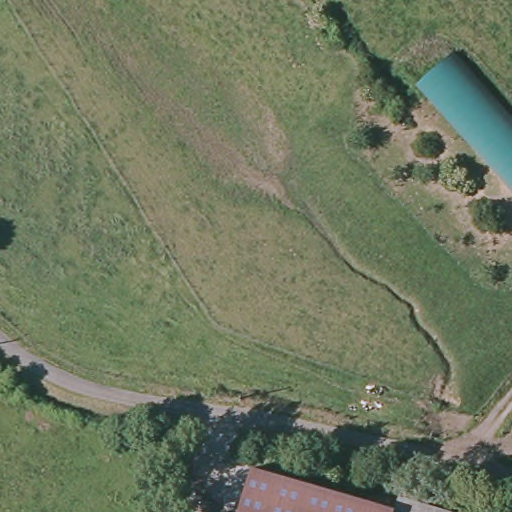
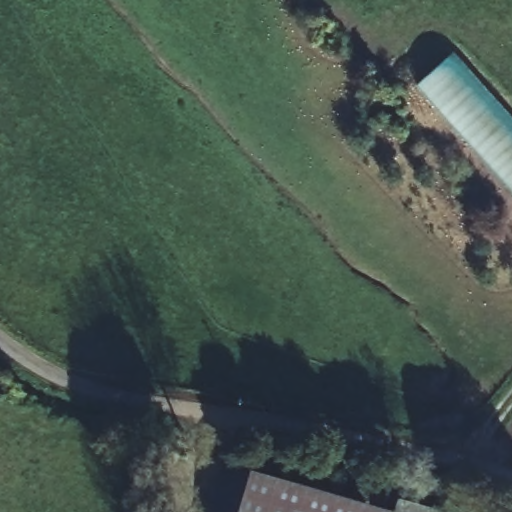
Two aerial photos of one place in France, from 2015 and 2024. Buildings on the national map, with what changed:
unchanged [(458,56),(512,116),(512,190),(421,89),(458,56)]
unchanged [(236,512),(248,472),(379,512),(236,512)]
unchanged [(443,512),(392,512),(396,499),(443,512)]

